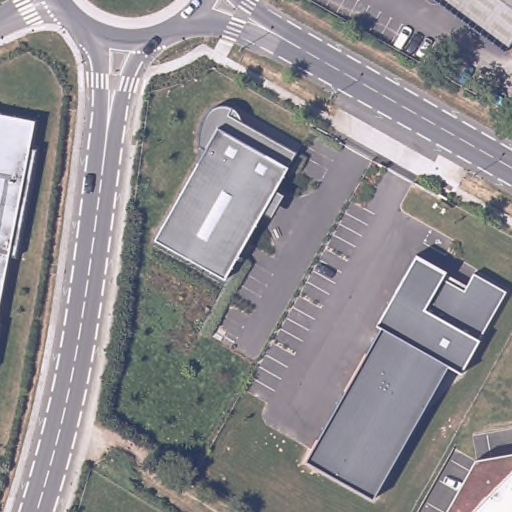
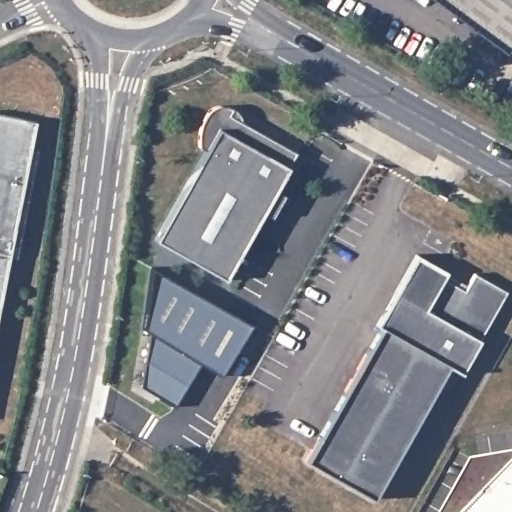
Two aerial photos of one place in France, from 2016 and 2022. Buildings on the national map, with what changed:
unchanged [(512,45),(507,51),(439,0),(512,0),(512,45)]
unchanged [(297,153),(225,281),(154,241),(205,147),(203,141),(201,135),(201,126),(206,115),(212,108),(222,106),(231,106),(236,110),(240,114),(242,121),(297,153)]
unchanged [(35,121),(0,309),(0,114),(35,121)]
unchanged [(447,272),(467,285),(475,272),(507,291),(480,341),(461,375),(447,367),(372,499),(306,461),(379,329),(376,327),(417,255),(447,272)]
new [(141,385),(149,332),(143,329),(152,268),(252,324),(221,374),(200,362),(174,406),(141,385)]
unchanged [(512,452),(512,512),(446,512),(475,459),(512,452)]

